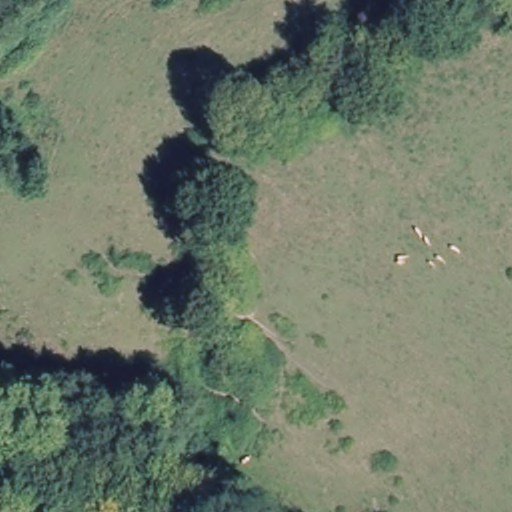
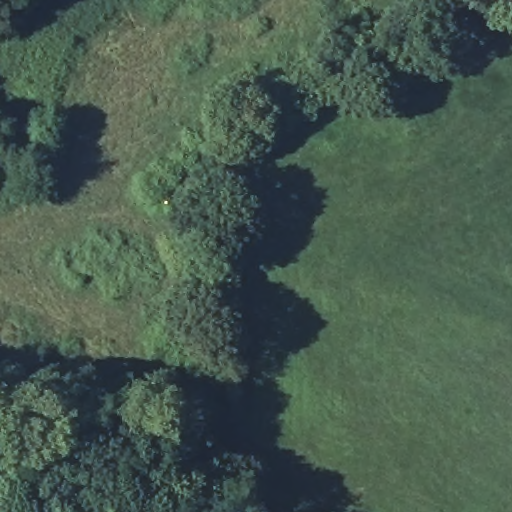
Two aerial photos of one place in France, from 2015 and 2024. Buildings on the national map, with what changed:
[]

